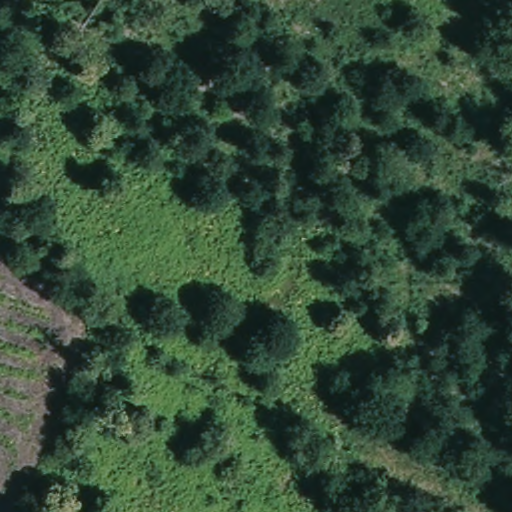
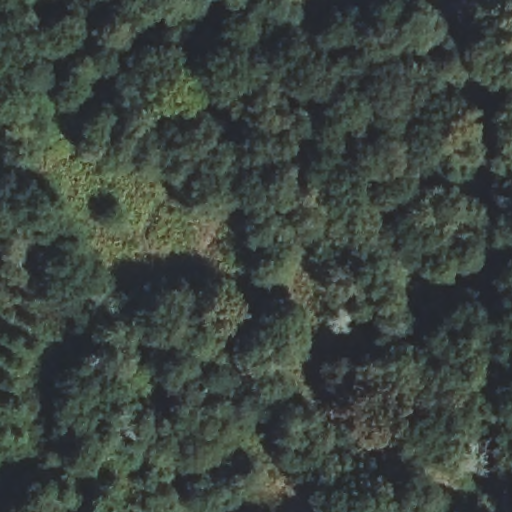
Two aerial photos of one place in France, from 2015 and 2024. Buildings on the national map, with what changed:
[]

